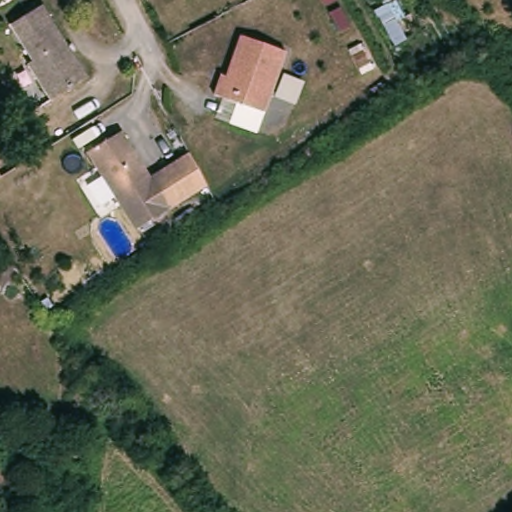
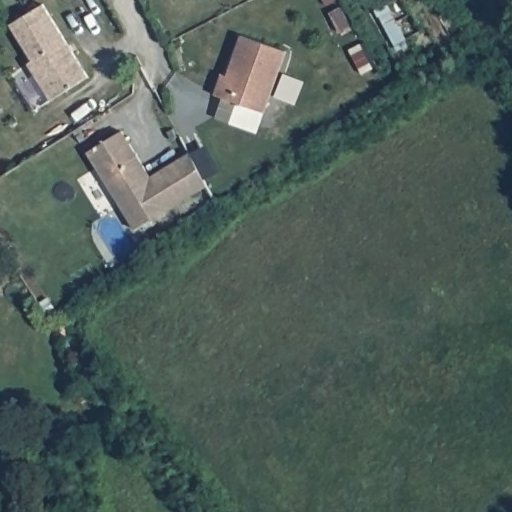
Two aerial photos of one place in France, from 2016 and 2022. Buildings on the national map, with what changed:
unchanged [(87,77),(50,100),(27,64),(32,61),(10,25),(42,5),(87,77)]
unchanged [(264,112),(215,95),(222,75),(227,77),(241,36),(286,51),(264,112)]
unchanged [(168,209),(134,230),(86,152),(121,132),(168,209)]
unchanged [(148,177),(187,152),(207,185),(168,209),(148,177)]
unchanged [(56,312),(48,317),(39,304),(47,298),(56,312)]

